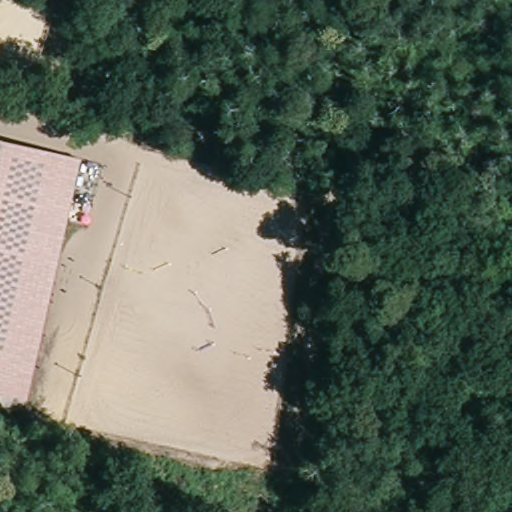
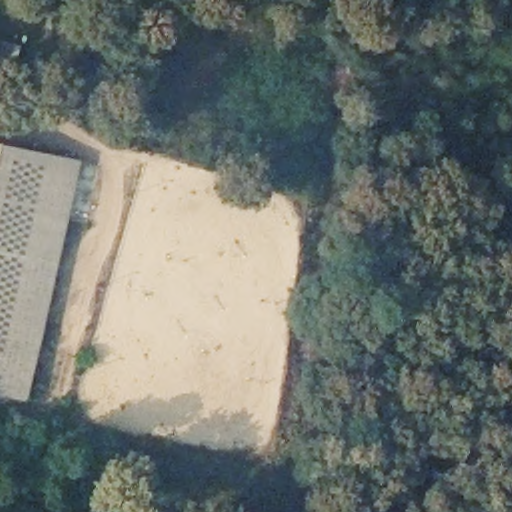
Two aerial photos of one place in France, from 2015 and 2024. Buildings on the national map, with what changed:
unchanged [(25,400),(0,394),(0,141),(79,158),(25,400)]

